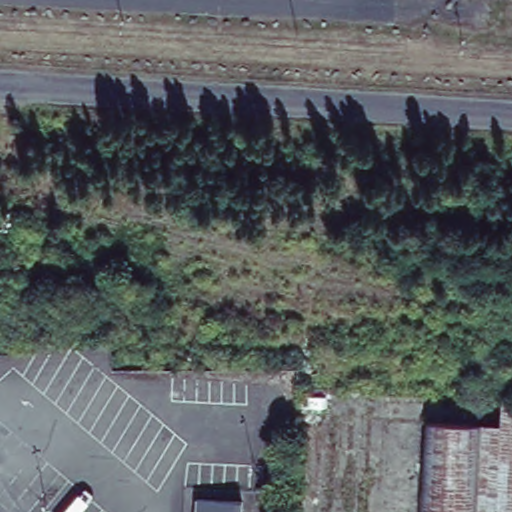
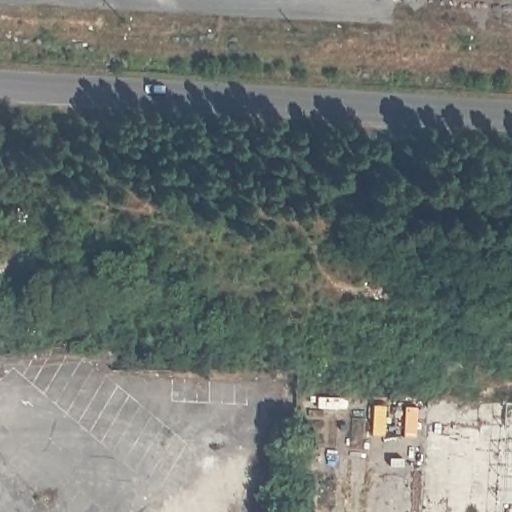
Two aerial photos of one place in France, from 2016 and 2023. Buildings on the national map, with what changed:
demolished [(431,422),(506,426),(508,402),(512,403),(512,503),(426,498),(431,422)]
demolished [(512,503),(512,512),(426,512),(426,498),(512,503)]
unchanged [(242,501),(242,512),(196,512),(196,499),(242,501)]

